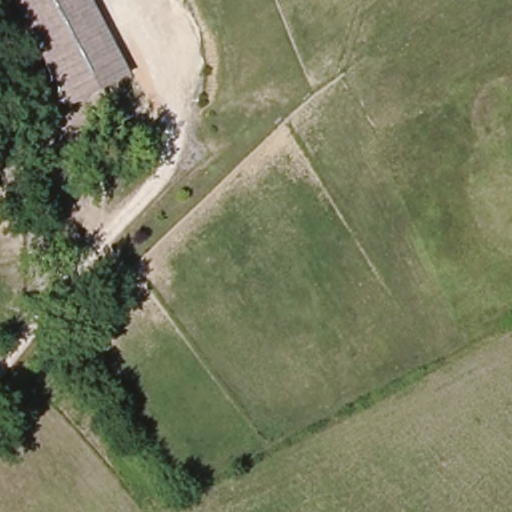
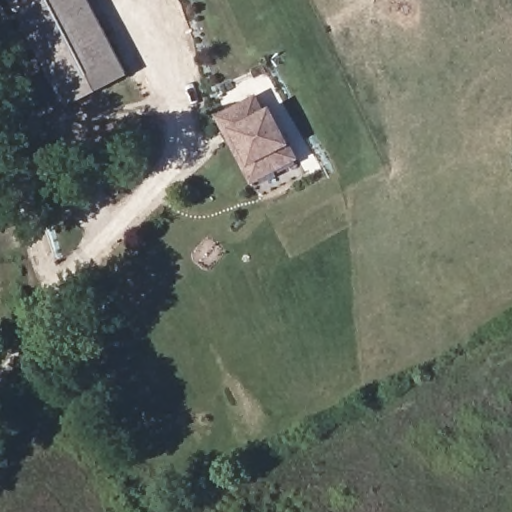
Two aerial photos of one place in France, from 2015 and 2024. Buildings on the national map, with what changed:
unchanged [(10,0),(89,0),(128,72),(66,107),(10,0)]
new [(256,92),(264,107),(270,104),(290,142),(300,160),(251,184),(215,113),(256,92)]

